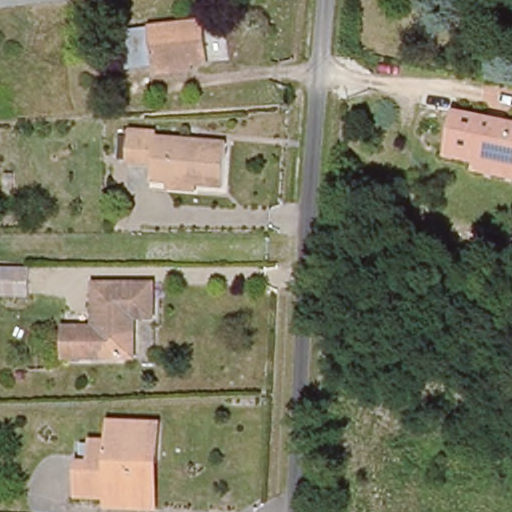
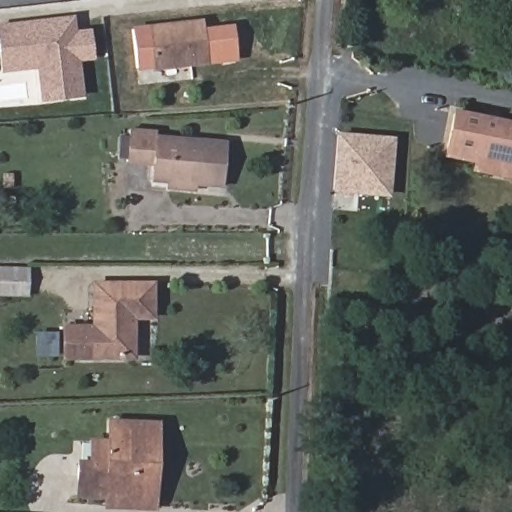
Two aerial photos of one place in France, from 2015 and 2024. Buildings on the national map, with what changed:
new [(83,98),(39,103),(35,70),(0,74),(0,24),(48,18),(71,19),(76,30),(88,29),(92,61),(79,62),(83,98)]
demolished [(139,64),(134,26),(190,18),(196,60),(178,63),(178,58),(139,64)]
new [(202,19),(203,28),(232,24),(236,62),(136,73),(131,27),(202,19)]
unchanged [(455,111),(512,121),(512,161),(481,155),(480,161),(447,155),(455,111)]
unchanged [(163,188),(164,176),(147,175),(148,162),(124,161),(126,127),(150,129),(149,135),(224,139),(222,179),(194,178),(194,189),(163,188)]
new [(390,198),(331,193),(337,132),(393,137),(392,143),(390,198)]
unchanged [(480,161),(481,155),(512,161),(512,176),(478,170),(480,161)]
unchanged [(42,264),(40,293),(0,291),(0,264),(42,264)]
unchanged [(154,314),(137,313),(138,356),(64,354),(65,325),(95,326),(96,280),(155,282),(154,314)]
unchanged [(112,508),(112,497),(84,498),(83,466),(96,466),(97,438),(113,438),(113,425),(160,425),(160,465),(159,508),(112,508)]

